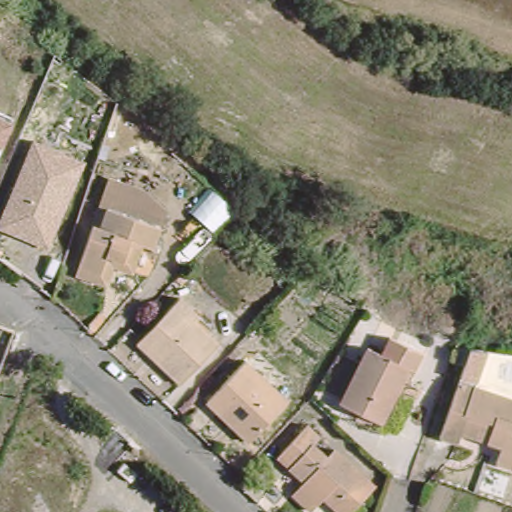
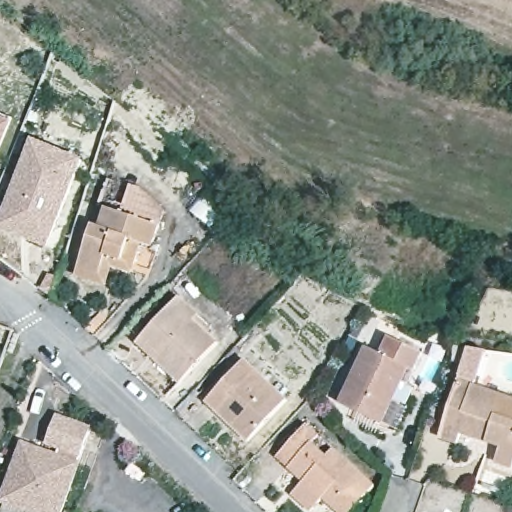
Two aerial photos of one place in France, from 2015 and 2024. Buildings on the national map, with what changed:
unchanged [(12,123),(0,152),(0,118),(12,123)]
unchanged [(0,229),(0,219),(31,139),(84,160),(48,248),(0,229)]
unchanged [(82,243),(72,240),(76,218),(83,222),(87,205),(94,208),(105,176),(163,205),(154,227),(161,230),(153,244),(159,249),(142,275),(136,272),(131,278),(114,268),(107,288),(73,276),(82,243)]
unchanged [(139,337),(172,300),(216,340),(178,383),(151,359),(156,352),(139,337)]
unchanged [(361,346),(376,353),(381,333),(419,354),(376,433),(332,405),(361,346)]
unchanged [(434,443),(463,353),(481,353),(469,389),(512,402),(512,449),(506,472),(490,467),(496,446),(464,437),(461,448),(442,443),(434,443)]
unchanged [(245,439),(226,424),(231,417),(223,410),(218,416),(201,402),(239,359),(281,397),(245,439)]
new [(0,503),(0,502),(22,439),(44,447),(58,414),(91,426),(81,457),(82,462),(64,512),(0,512),(0,510),(2,504),(0,503)]
unchanged [(324,512),(317,506),(313,512),(311,512),(289,492),(296,483),(299,480),(270,454),(300,423),(314,436),(307,444),(321,457),(329,448),(368,483),(376,490),(355,512),(324,512)]

